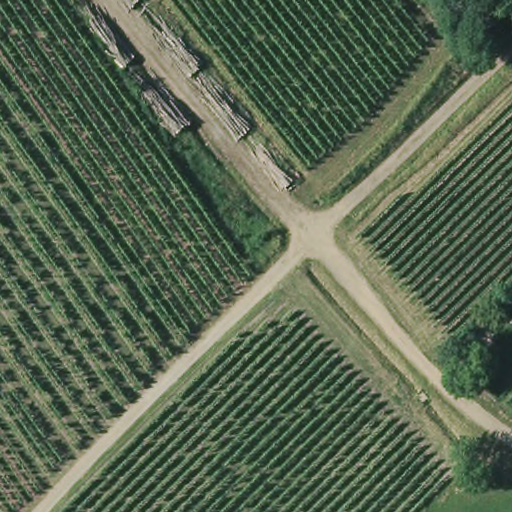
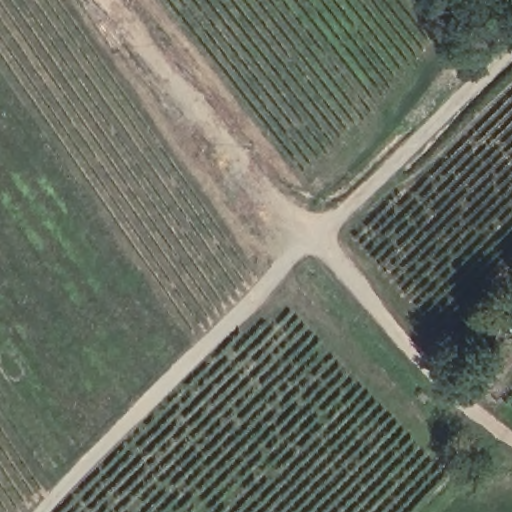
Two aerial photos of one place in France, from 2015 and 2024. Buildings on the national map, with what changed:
[]

